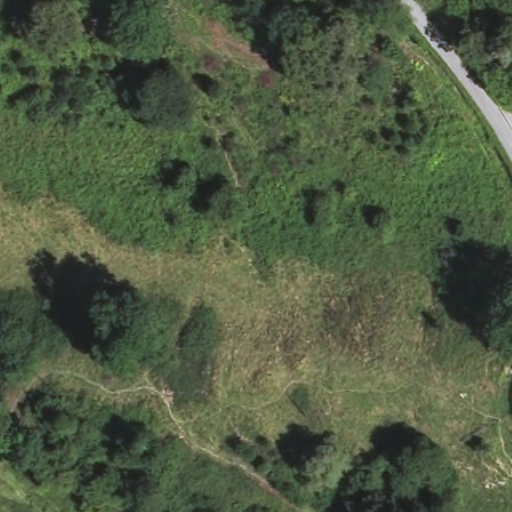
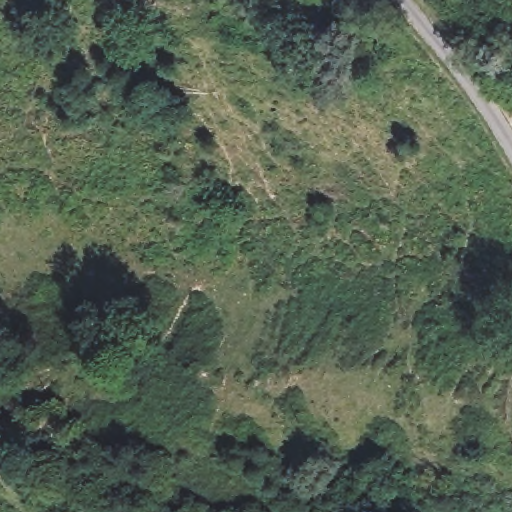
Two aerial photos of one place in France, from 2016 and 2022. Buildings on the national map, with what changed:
[]

